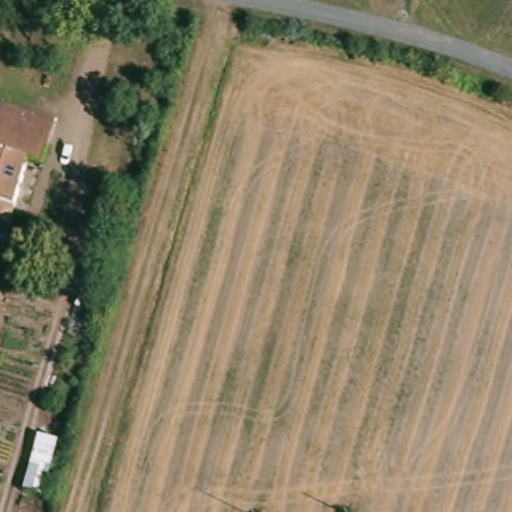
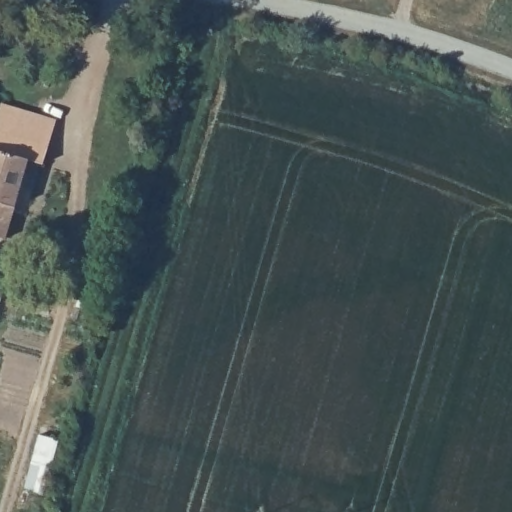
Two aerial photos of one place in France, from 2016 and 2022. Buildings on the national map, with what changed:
unchanged [(0,113),(0,111),(56,126),(51,146),(0,134),(0,113)]
unchanged [(30,169),(8,244),(0,243),(0,134),(51,146),(45,174),(30,169)]

